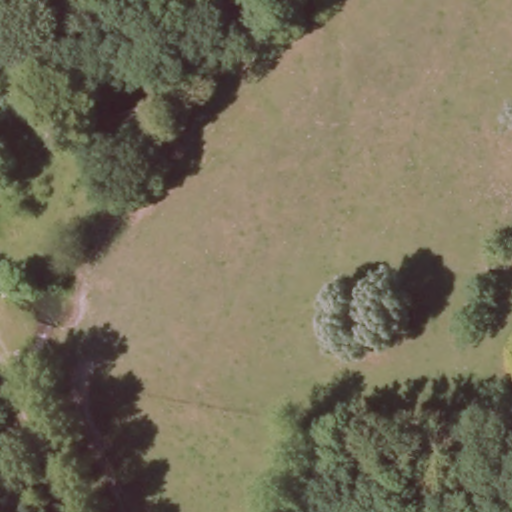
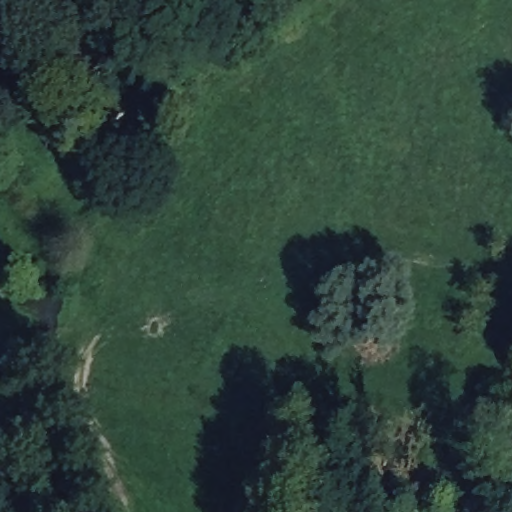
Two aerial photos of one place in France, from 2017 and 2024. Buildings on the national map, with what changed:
unchanged [(91,123),(77,118),(85,100),(98,105),(91,123)]

